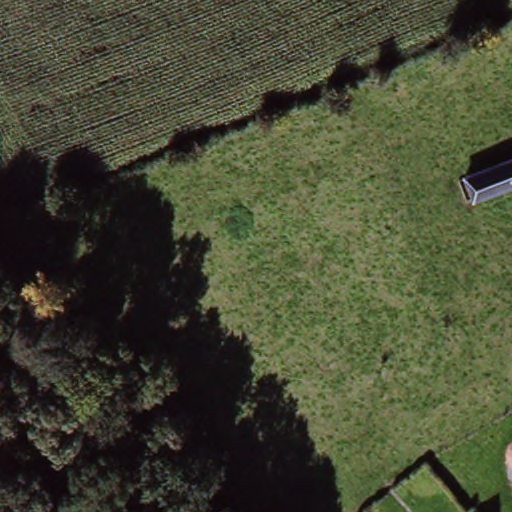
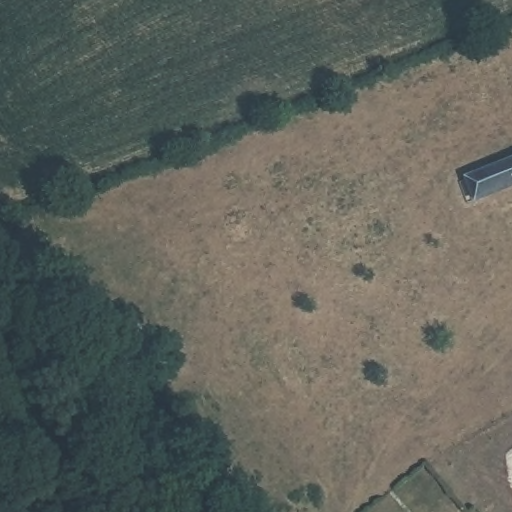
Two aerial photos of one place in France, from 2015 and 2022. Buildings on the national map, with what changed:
unchanged [(466,206),(457,184),(512,162),(512,187),(466,206)]

